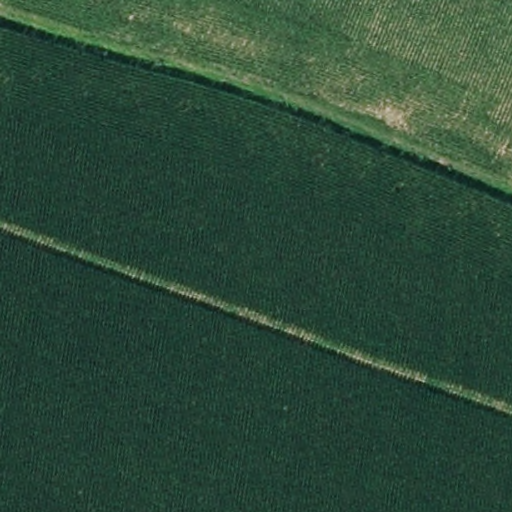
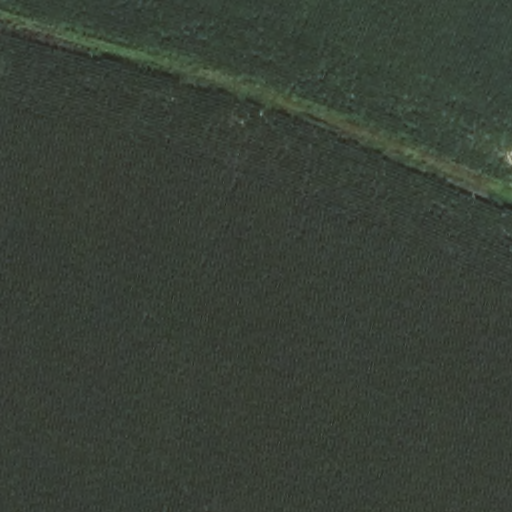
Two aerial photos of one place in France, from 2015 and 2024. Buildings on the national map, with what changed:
[]

